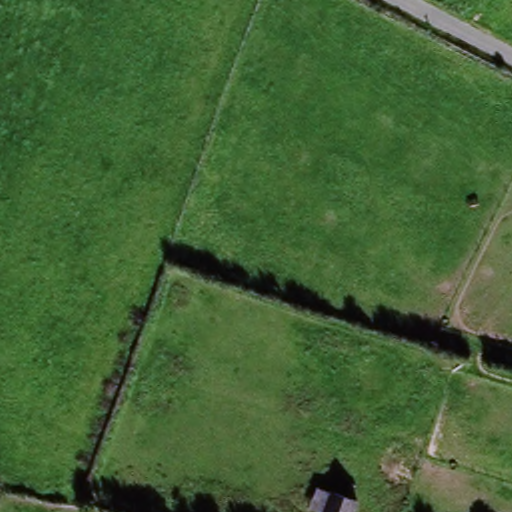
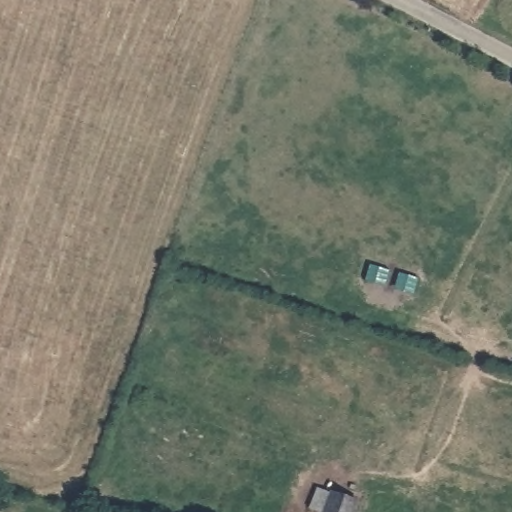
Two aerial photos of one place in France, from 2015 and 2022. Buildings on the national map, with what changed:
unchanged [(355,512),(328,512),(335,497),(357,507),(355,512)]

